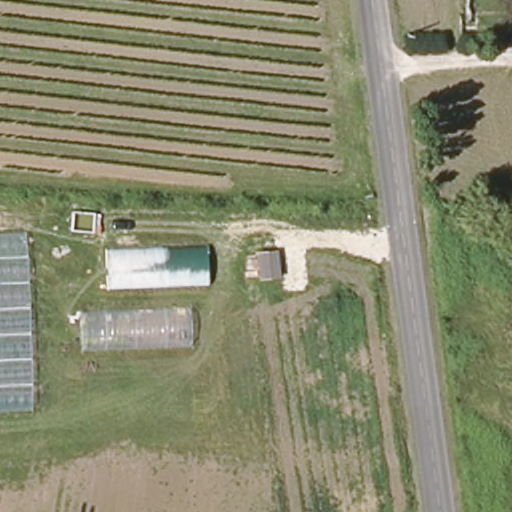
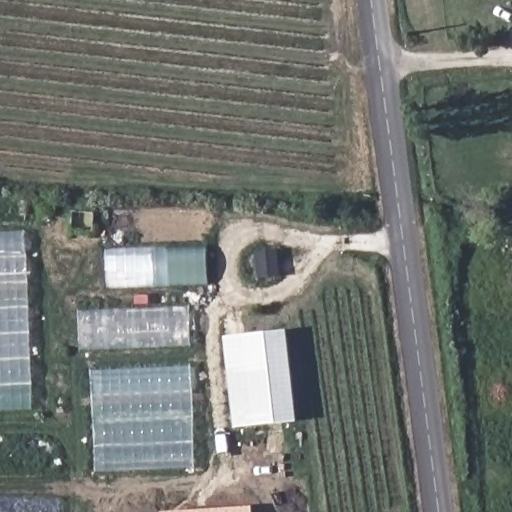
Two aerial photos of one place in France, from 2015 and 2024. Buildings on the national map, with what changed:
new [(69,229),(71,210),(94,212),(92,231),(69,229)]
unchanged [(31,407),(0,409),(0,232),(24,232),(31,407)]
new [(207,281),(106,285),(105,252),(207,248),(207,281)]
new [(256,252),(275,251),(278,277),(259,279),(256,252)]
new [(79,347),(78,311),(188,307),(189,343),(79,347)]
new [(222,337),(286,330),(295,422),(233,428),(222,337)]
new [(90,370),(189,366),(193,467),(95,470),(90,370)]
new [(251,512),(160,512),(251,507),(251,512)]

